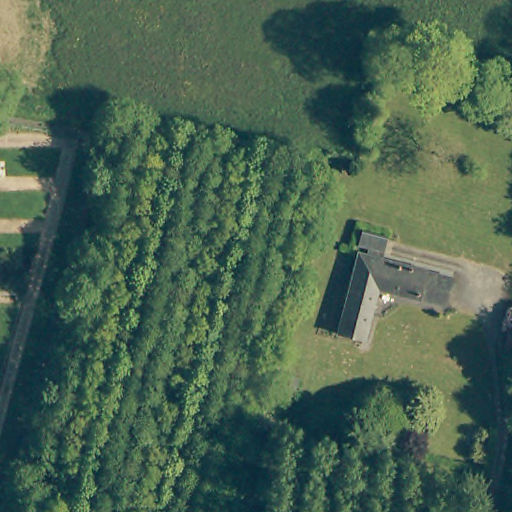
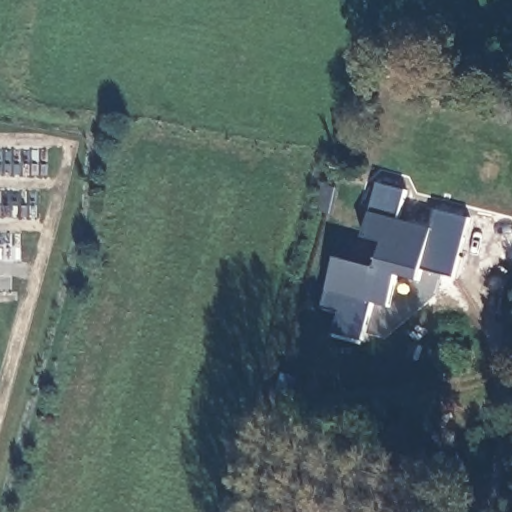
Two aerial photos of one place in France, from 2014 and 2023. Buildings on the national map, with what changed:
new [(456,277),(422,269),(419,280),(399,274),(389,305),(373,301),(364,338),(334,332),(339,312),(323,308),(337,254),(375,264),(382,243),(361,237),(377,180),(407,188),(397,226),(411,230),(413,222),(430,227),(436,207),(471,216),(456,277)]
demolished [(449,274),(443,303),(375,288),(363,340),(335,332),(355,251),(449,274)]

